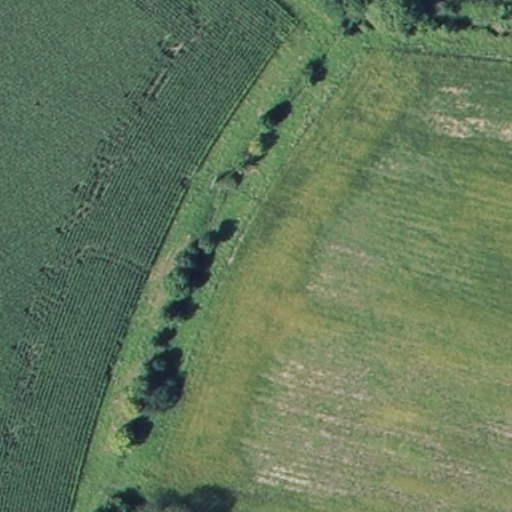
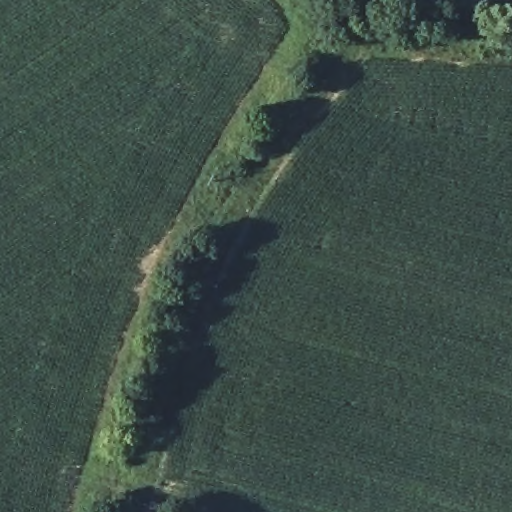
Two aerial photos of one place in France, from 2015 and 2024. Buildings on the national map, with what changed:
unchanged [(377,2),(378,0),(400,0),(395,10),(377,2)]

